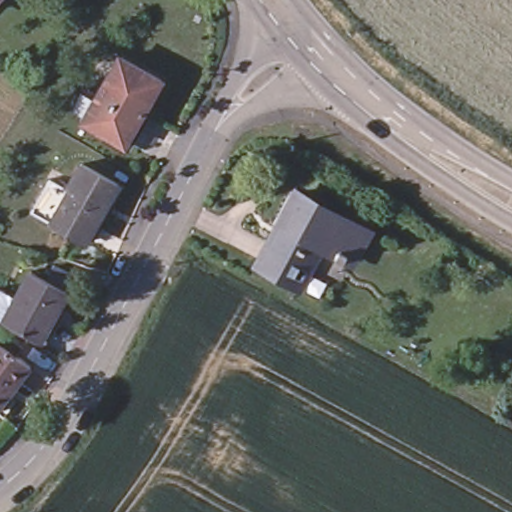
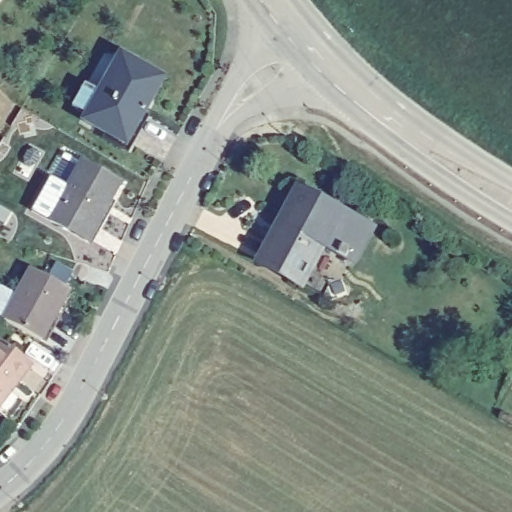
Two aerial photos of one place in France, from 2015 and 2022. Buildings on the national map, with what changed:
unchanged [(160,80),(123,149),(82,123),(85,118),(70,110),(82,86),(97,95),(118,57),(160,80)]
unchanged [(123,187),(90,245),(55,225),(36,214),(55,180),(74,191),(88,166),(123,187)]
unchanged [(301,194),(368,234),(351,263),(320,244),(296,283),(259,261),(301,194)]
unchanged [(30,272),(65,295),(38,337),(2,313),(30,272)]
unchanged [(0,402),(0,341),(30,367),(0,402)]

